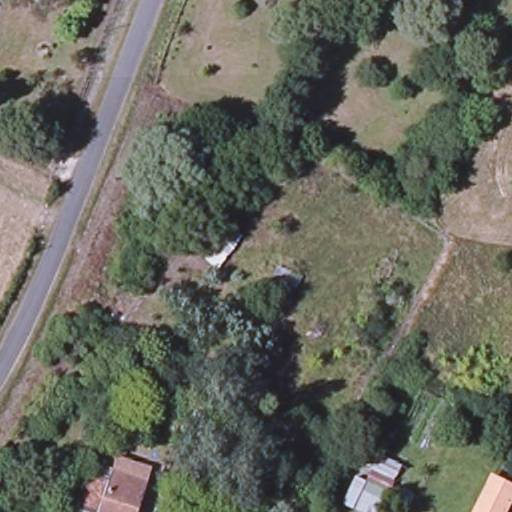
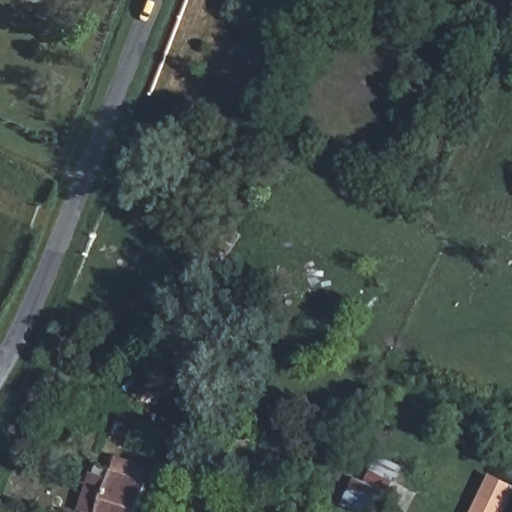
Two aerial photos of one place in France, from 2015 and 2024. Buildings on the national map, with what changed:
unchanged [(295,295),(271,287),(276,274),(298,283),(295,295)]
unchanged [(180,445),(192,416),(209,420),(198,452),(180,445)]
unchanged [(353,485),(365,490),(377,464),(398,473),(381,512),(341,512),(353,485)]
unchanged [(142,487),(137,512),(87,512),(93,483),(110,487),(112,477),(142,487)]
unchanged [(512,493),(512,502),(509,512),(477,512),(488,483),(512,493)]

